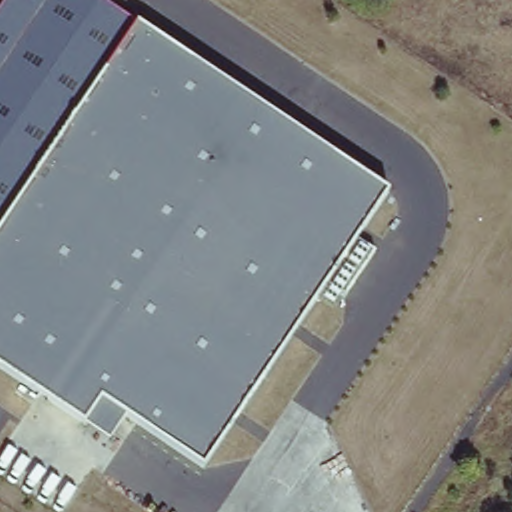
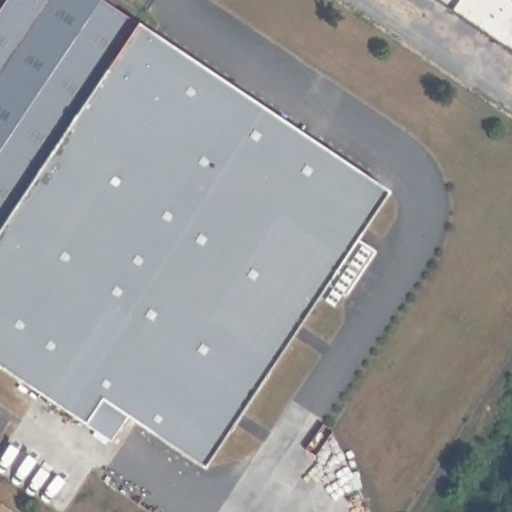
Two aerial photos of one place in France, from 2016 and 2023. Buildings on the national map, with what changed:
unchanged [(102,0),(136,23),(387,192),(202,466),(123,414),(106,438),(0,366),(0,7),(5,0),(102,0)]
new [(433,0),(512,0),(512,54),(433,0)]

